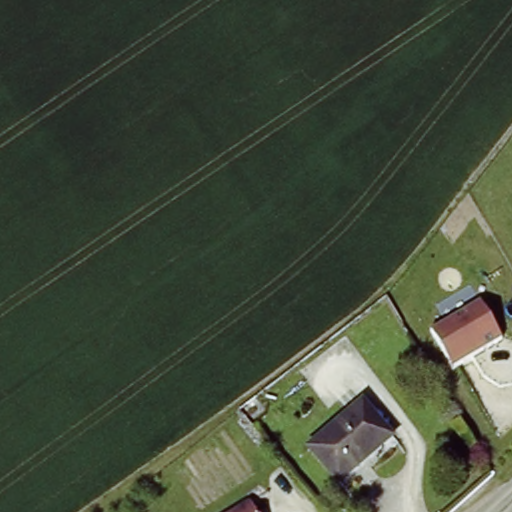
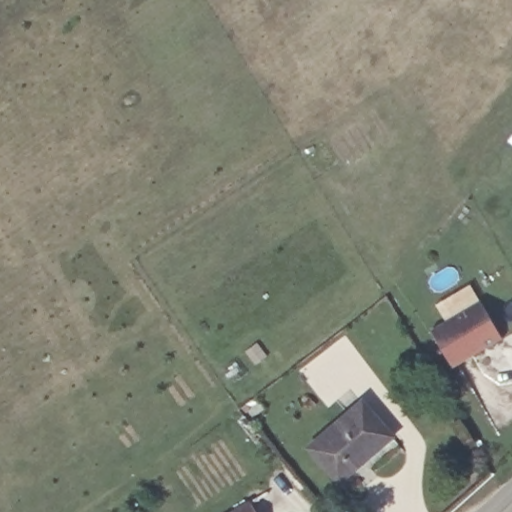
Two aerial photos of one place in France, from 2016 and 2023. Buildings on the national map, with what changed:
unchanged [(480,301),(502,339),(452,371),(430,329),(480,301)]
unchanged [(395,439),(342,484),(312,448),(365,403),(395,439)]
unchanged [(250,504),(255,512),(236,512),(250,504)]

